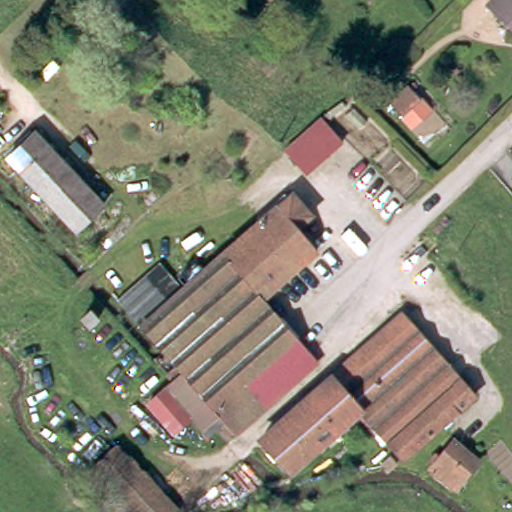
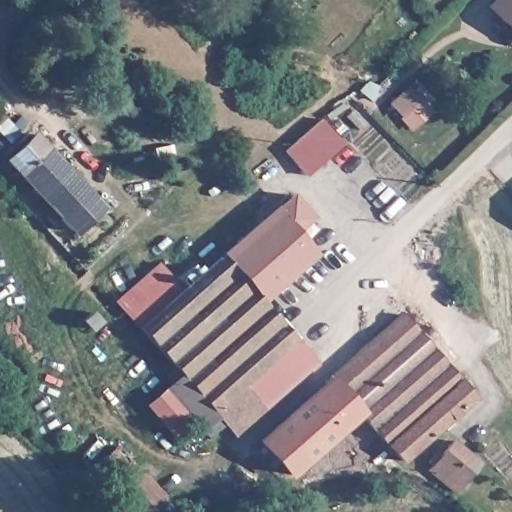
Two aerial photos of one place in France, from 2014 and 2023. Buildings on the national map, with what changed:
unchanged [(484,0),(512,0),(512,31),(482,2),(484,0)]
unchanged [(435,105),(415,123),(392,100),(412,81),(435,105)]
unchanged [(324,115),(343,140),(305,170),(285,144),(324,115)]
unchanged [(96,202),(69,227),(4,155),(31,130),(96,202)]
unchanged [(262,247),(246,228),(244,226),(267,202),(282,189),(301,210),(289,222),(310,245),(285,273),(262,247)]
unchanged [(182,283),(224,245),(244,226),(246,228),(262,247),(285,273),(263,295),(317,356),(242,435),(224,417),(216,424),(207,433),(197,425),(188,432),(172,418),(180,406),(167,393),(174,386),(167,378),(172,370),(135,327),(182,283)]
unchanged [(155,258),(158,261),(182,283),(135,327),(126,317),(110,300),(155,258)]
unchanged [(357,413),(290,478),(257,446),(389,313),(469,393),(402,453),(401,457),(357,413)]
unchanged [(83,316),(93,327),(82,335),(73,324),(83,316)]
unchanged [(450,435),(475,455),(454,485),(428,468),(450,435)]
unchanged [(122,512),(82,471),(111,443),(157,491),(175,508),(171,512),(122,512)]

